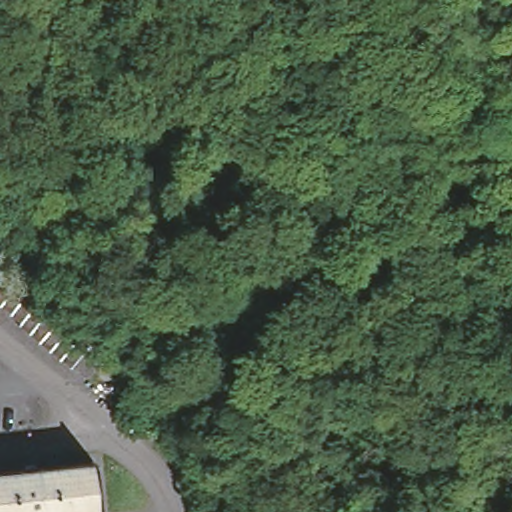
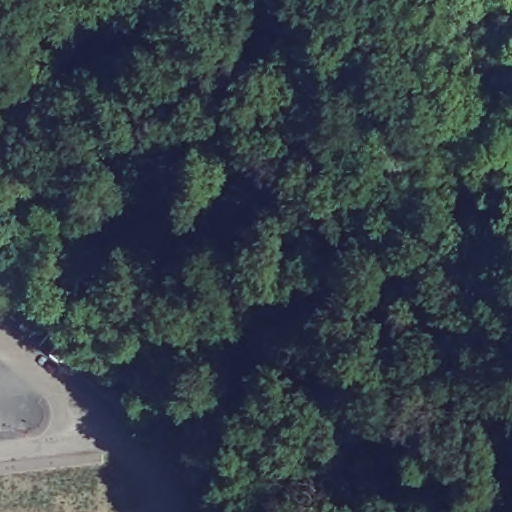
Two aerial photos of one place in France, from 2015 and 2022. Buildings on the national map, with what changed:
unchanged [(34,304),(33,307),(85,348),(68,368),(17,327),(19,324),(0,308),(0,276),(34,304)]
demolished [(84,455),(90,506),(41,512),(0,512),(0,465),(84,455)]

